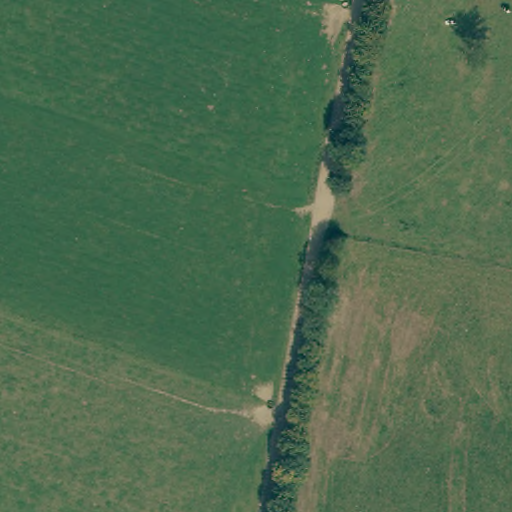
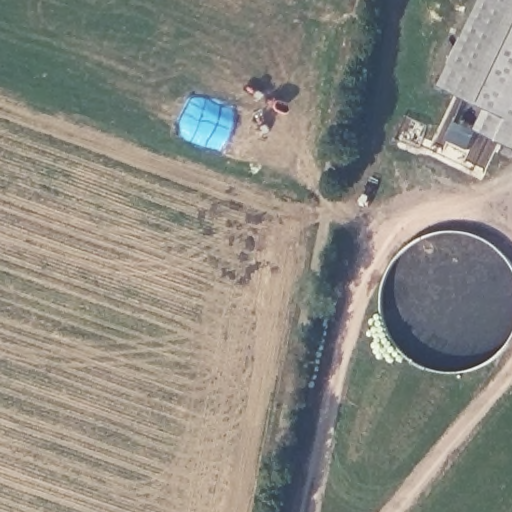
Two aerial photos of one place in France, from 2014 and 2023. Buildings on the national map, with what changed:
new [(487,107),(442,86),(484,0),(512,0),(512,147),(476,128),(487,107)]

